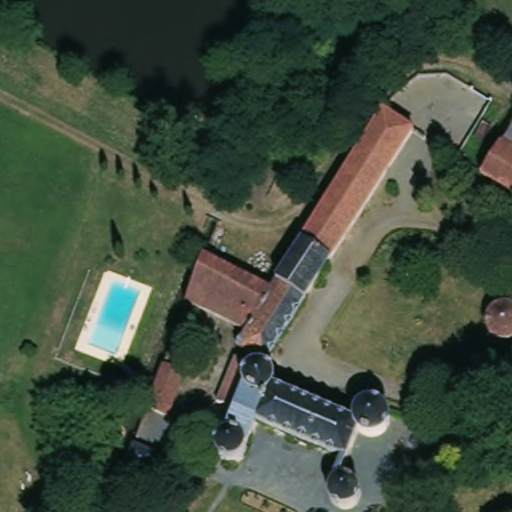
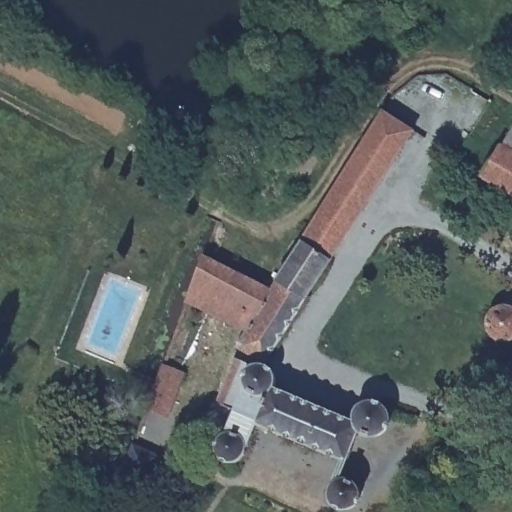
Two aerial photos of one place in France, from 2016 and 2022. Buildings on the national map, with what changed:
unchanged [(360,191),(342,179),(385,111),(415,130),(416,134),(374,199),(360,191)]
unchanged [(512,147),(504,143),(512,129),(512,147)]
unchanged [(504,143),(512,147),(512,190),(484,173),(504,143)]
unchanged [(248,271),(253,261),(283,275),(342,179),(360,191),(374,199),(272,368),(286,379),(283,385),(357,424),(363,411),(369,405),(378,401),(389,403),(395,412),(395,424),(389,434),(379,443),(363,480),(363,485),(365,496),(361,503),(349,509),(339,505),(333,495),(334,485),(343,458),(271,421),(259,442),(253,445),(242,443),(228,434),(251,394),(232,383),(242,363),(254,368),(258,361),(239,352),(246,335),(191,300),(208,253),(248,271)]
unchanged [(493,328),(493,322),(495,317),(498,312),(502,310),(508,308),(512,308),(512,342),(512,343),(506,342),(499,339),(496,335),(493,328)]
unchanged [(185,367),(174,393),(153,385),(157,375),(158,371),(163,359),(185,367)]
unchanged [(184,414),(188,402),(201,407),(197,419),(184,414)]
unchanged [(125,458),(131,442),(134,435),(159,445),(156,453),(150,468),(125,458)]

